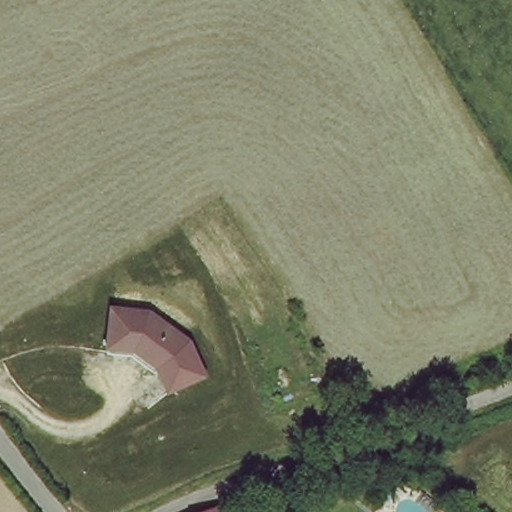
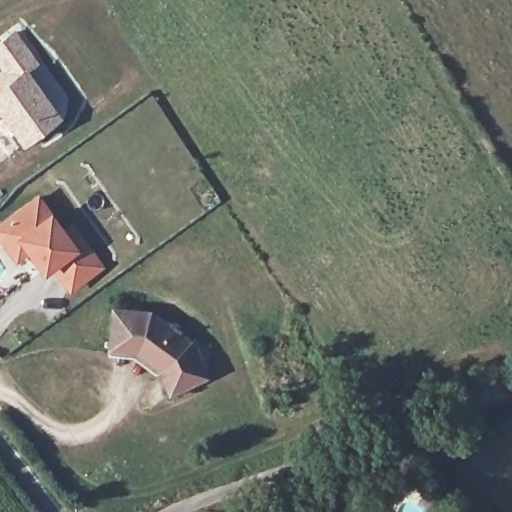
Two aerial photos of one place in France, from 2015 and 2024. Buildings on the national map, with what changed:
new [(2,69),(0,66),(0,41),(15,28),(57,82),(54,85),(43,74),(37,78),(63,116),(20,147),(0,117),(0,71),(2,69)]
new [(38,193),(63,228),(73,221),(104,266),(70,292),(52,266),(40,274),(25,253),(14,261),(0,241),(0,221),(38,193)]
unchanged [(126,347),(102,346),(103,333),(103,302),(140,303),(182,329),(200,359),(171,374),(158,350),(151,361),(126,347)]

